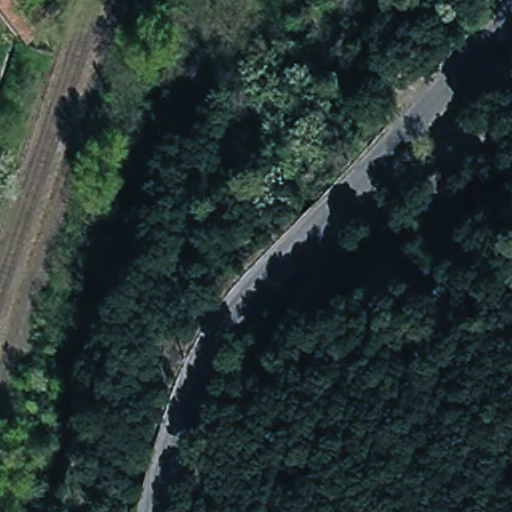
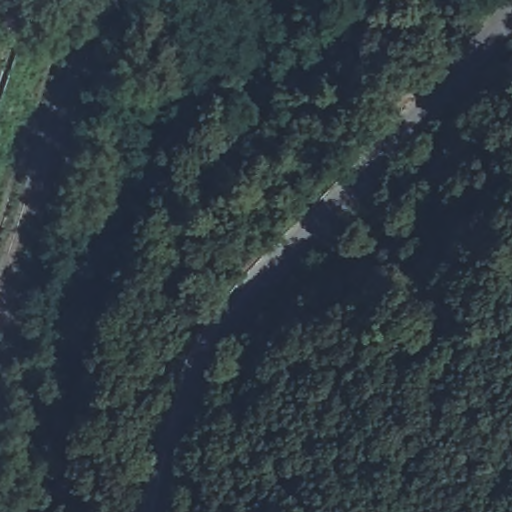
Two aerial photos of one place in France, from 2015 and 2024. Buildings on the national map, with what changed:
unchanged [(0,16),(0,0),(37,0),(50,16),(52,20),(48,23),(22,43),(17,37),(0,16)]

